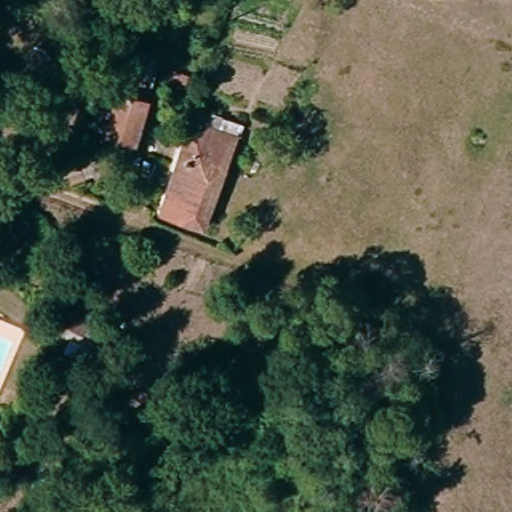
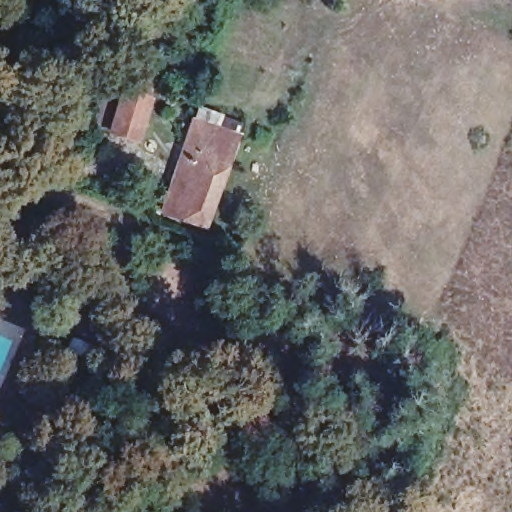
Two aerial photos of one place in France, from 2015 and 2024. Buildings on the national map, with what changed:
unchanged [(151,104),(137,147),(111,138),(125,96),(151,104)]
unchanged [(234,133),(202,217),(172,207),(190,157),(200,159),(209,134),(202,130),(204,121),(234,133)]

